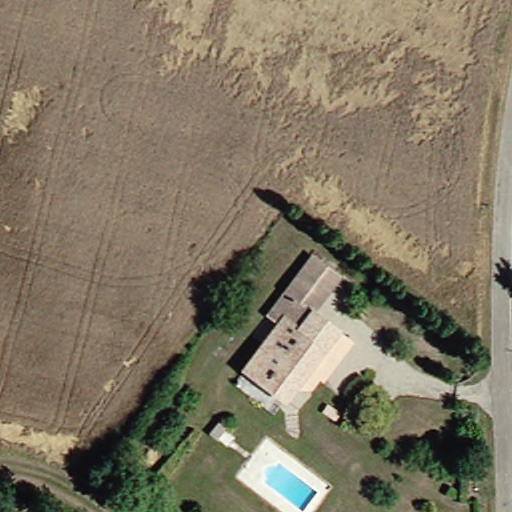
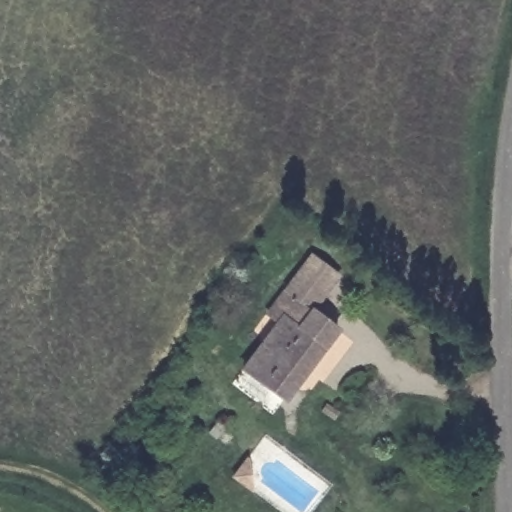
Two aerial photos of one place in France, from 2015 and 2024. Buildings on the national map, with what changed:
unchanged [(292,287),(315,250),(343,270),(319,305),(292,287)]
unchanged [(346,323),(297,397),(254,371),(288,319),(276,312),(292,287),(319,305),(346,323)]

